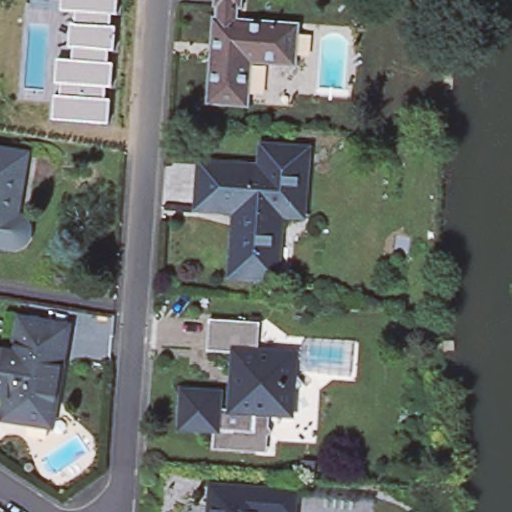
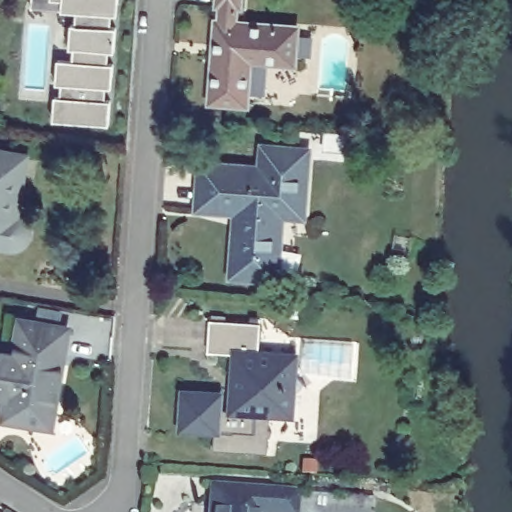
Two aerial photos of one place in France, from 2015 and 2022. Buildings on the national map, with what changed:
unchanged [(117,13),(110,13),(110,25),(116,25),(115,49),(108,50),(107,63),(114,64),(112,87),(105,87),(105,99),(110,100),(108,123),(53,119),(54,96),(60,97),(61,83),(55,82),(57,60),(72,61),(73,47),(69,47),(70,24),(75,25),(75,11),(62,10),(62,0),(118,0),(117,13)]
unchanged [(213,0),(286,0),(295,0),(290,65),(250,62),(248,103),(206,100),(213,0)]
unchanged [(282,273),(239,270),(244,201),(205,199),(208,158),(266,162),(267,141),(313,144),(309,207),(286,206),(282,273)]
unchanged [(10,212),(21,213),(22,235),(15,242),(0,240),(0,149),(19,152),(10,212)]
unchanged [(54,433),(7,425),(11,404),(0,402),(0,349),(24,352),(29,322),(70,329),(54,433)]
unchanged [(235,354),(207,353),(207,323),(262,325),(260,353),(295,355),(295,371),(308,381),(293,392),(292,407),(257,405),(256,426),(187,424),(188,390),(219,391),(219,403),(235,403),(235,354)]
unchanged [(292,491),(290,512),(285,512),(259,509),(259,512),(208,512),(211,484),(292,491)]

